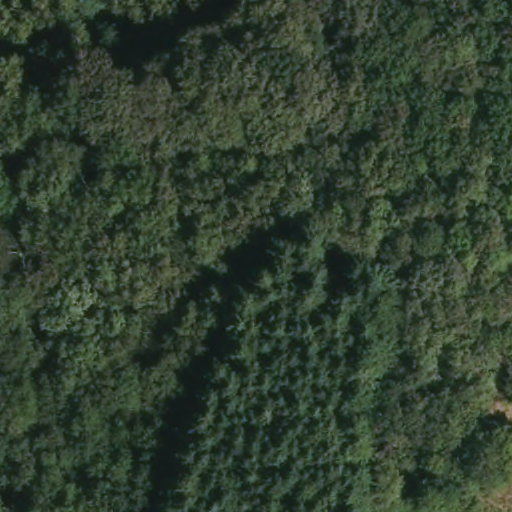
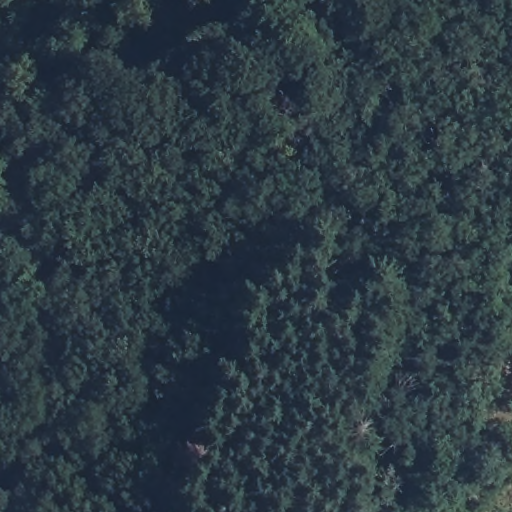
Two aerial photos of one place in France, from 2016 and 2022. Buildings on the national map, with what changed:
[]

